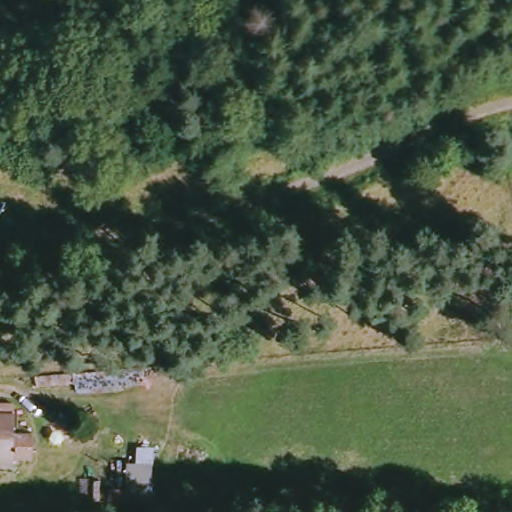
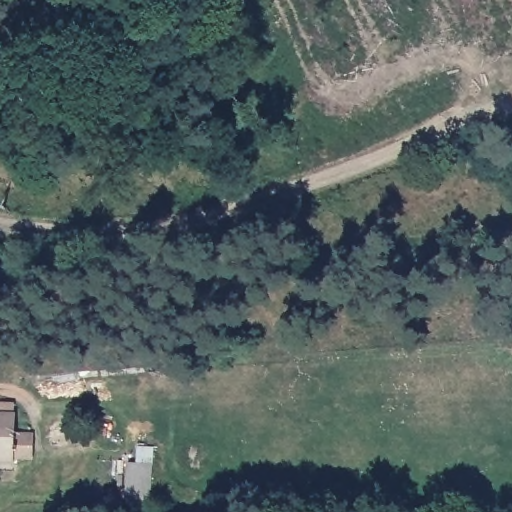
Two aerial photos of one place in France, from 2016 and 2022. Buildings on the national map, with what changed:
unchanged [(0,404),(17,405),(17,437),(37,440),(35,460),(18,459),(17,465),(0,465),(0,404)]
unchanged [(113,504),(113,490),(130,491),(130,465),(151,466),(147,505),(113,504)]

